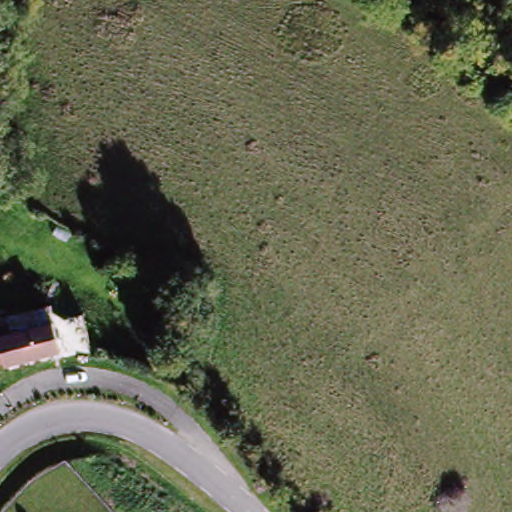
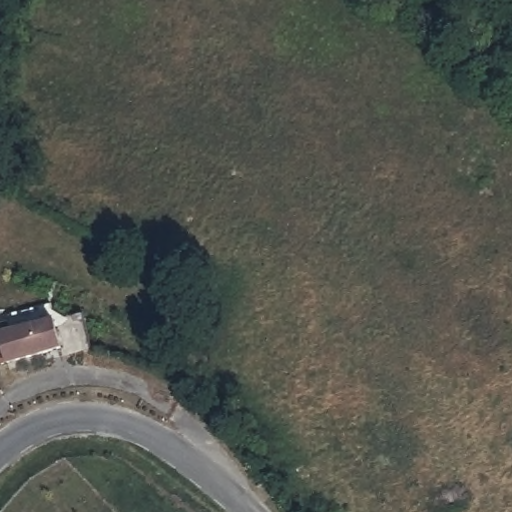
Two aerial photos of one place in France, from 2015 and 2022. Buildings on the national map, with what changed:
unchanged [(5,357),(6,341),(0,341),(0,303),(8,303),(7,328),(62,332),(60,361),(5,357)]

